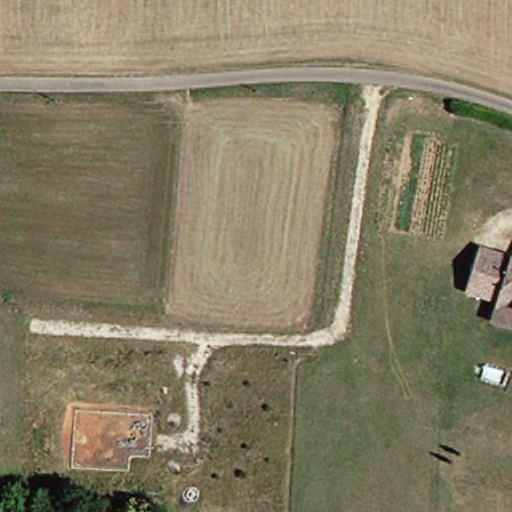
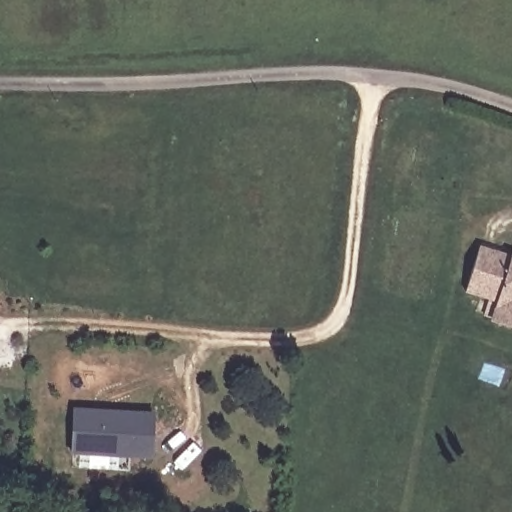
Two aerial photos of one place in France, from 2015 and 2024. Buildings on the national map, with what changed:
unchanged [(512,256),(512,307),(487,299),(455,288),(472,250),(475,244),(512,256)]
unchanged [(487,299),(512,307),(512,328),(480,316),(487,299)]
new [(73,407),(155,412),(152,460),(72,454),(73,407)]

